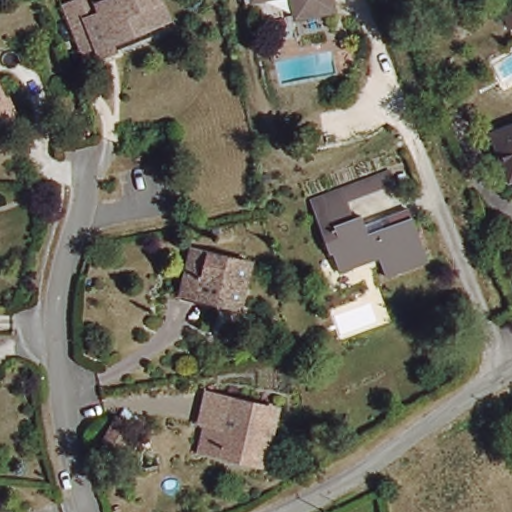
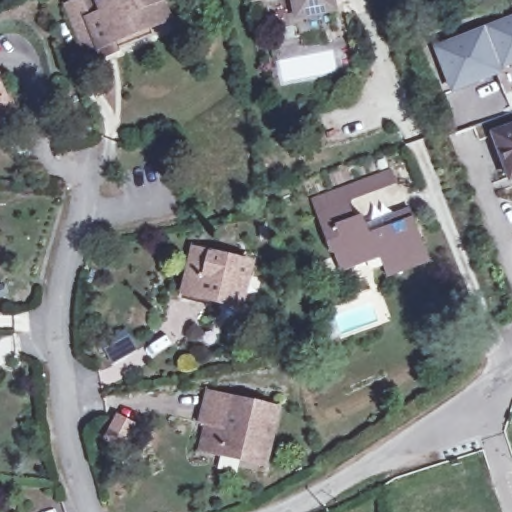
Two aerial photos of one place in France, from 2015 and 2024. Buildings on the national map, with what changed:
unchanged [(118,50),(102,57),(87,21),(79,25),(89,49),(82,52),(64,7),(70,4),(80,0),(99,0),(100,5),(113,0),(161,0),(168,19),(149,27),(151,32),(116,47),(118,50)]
unchanged [(301,12),(299,0),(338,0),(338,5),(301,12)]
new [(505,60),(496,62),(500,73),(454,90),(438,47),(483,30),(485,34),(493,31),(492,27),(512,19),(512,63),(507,65),(505,60)]
unchanged [(16,122),(0,130),(0,86),(16,122)]
unchanged [(512,169),(499,135),(512,130),(512,169)]
unchanged [(361,250),(365,259),(340,268),(332,250),(330,250),(310,194),(388,165),(392,177),(346,194),(354,214),(361,211),(370,231),(413,214),(429,256),(386,272),(375,244),(361,250)]
unchanged [(186,266),(192,267),(197,246),(253,260),(243,302),(187,290),(180,288),(186,266)]
unchanged [(228,455),(210,450),(216,423),(210,422),(215,395),(285,411),(274,458),(272,465),(228,455)]
unchanged [(120,417),(135,423),(125,448),(109,441),(120,417)]

